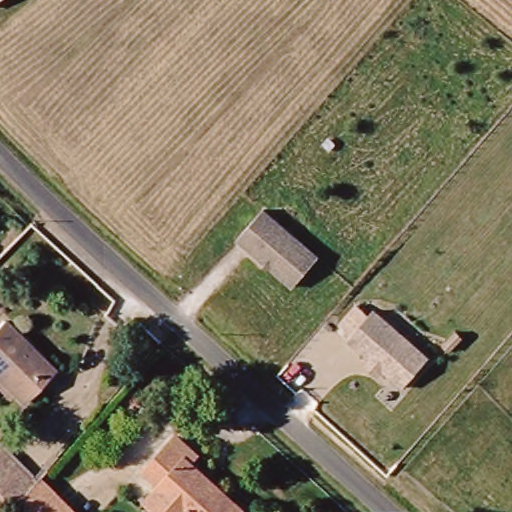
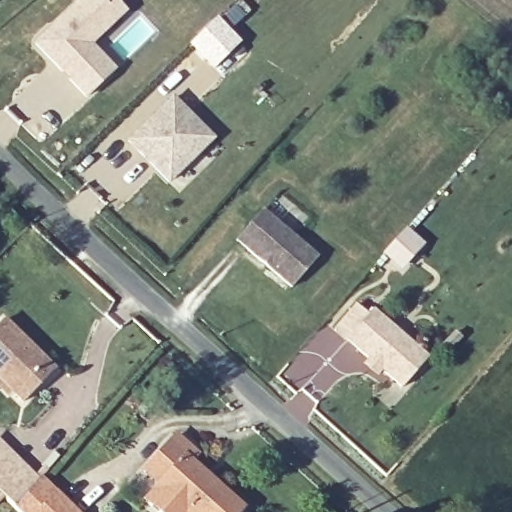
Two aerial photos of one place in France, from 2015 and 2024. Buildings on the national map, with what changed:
new [(115,0),(118,0),(128,12),(92,45),(117,69),(86,100),(33,44),(78,0),(102,0),(108,6),(115,0)]
new [(129,142),(172,99),(197,125),(212,140),(195,156),(169,182),(150,162),(144,157),(129,142)]
unchanged [(268,211),(320,261),(293,289),(241,239),(268,211)]
unchanged [(376,311),(427,361),(401,388),(350,338),(376,311)]
unchanged [(0,328),(2,326),(54,373),(25,404),(0,382),(0,328)]
unchanged [(146,501),(161,483),(145,469),(174,437),(195,456),(189,463),(241,509),(238,512),(159,512),(146,501)]
unchanged [(14,505),(0,492),(0,451),(35,482),(14,505)]
unchanged [(14,505),(35,482),(41,475),(78,512),(21,512),(14,505)]

